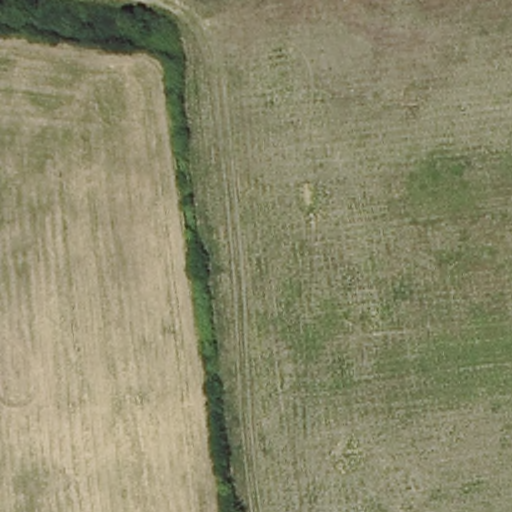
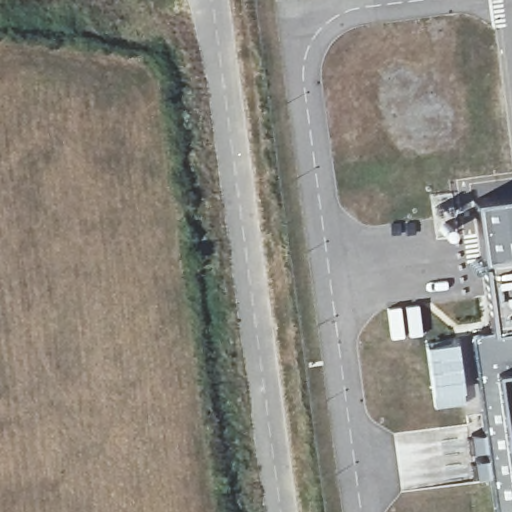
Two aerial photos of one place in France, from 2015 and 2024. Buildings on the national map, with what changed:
new [(469,335),(492,332),(474,202),(512,197),(512,512),(493,512),(469,335)]

